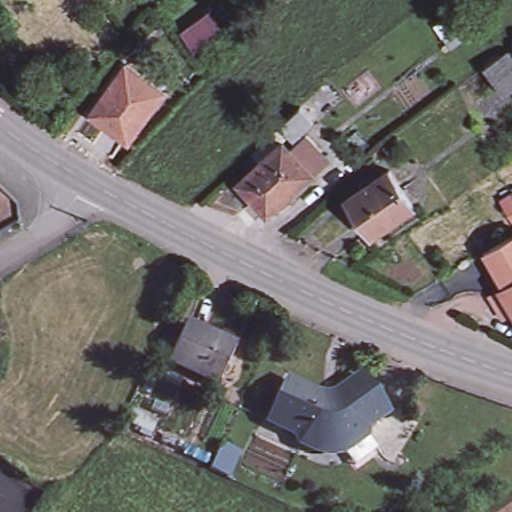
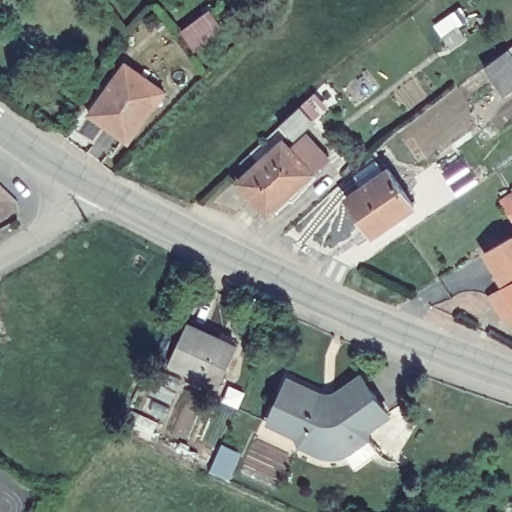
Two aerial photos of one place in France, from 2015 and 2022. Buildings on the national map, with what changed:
unchanged [(210,16),(222,33),(195,54),(181,37),(210,16)]
unchanged [(502,55),(512,68),(512,90),(507,94),(487,67),(502,55)]
unchanged [(164,93),(127,142),(89,114),(125,64),(164,93)]
unchanged [(311,120),(294,136),(291,139),(279,126),(300,107),(311,120)]
unchanged [(310,173),(295,186),(300,192),(291,203),(289,201),(275,214),(270,209),(266,214),(237,182),(281,142),(310,173)]
unchanged [(387,170),(412,206),(372,234),(346,198),(387,170)]
unchanged [(500,199),(512,192),(512,220),(500,199)]
unchanged [(502,264),(508,282),(502,287),(480,251),(512,232),(512,258),(502,264)]
unchanged [(502,321),(489,297),(502,287),(508,282),(502,264),(512,258),(512,317),(502,321)]
unchanged [(238,343),(221,385),(169,363),(186,322),(238,343)]
unchanged [(325,452),(316,450),(309,447),(300,441),(302,436),(268,420),(288,377),(317,391),(322,393),(328,394),(335,394),(341,391),(360,375),(388,414),(365,430),(367,436),(375,456),(366,459),(367,463),(350,469),(343,451),(325,452)]
unchanged [(235,450),(223,477),(209,470),(221,444),(235,450)]

